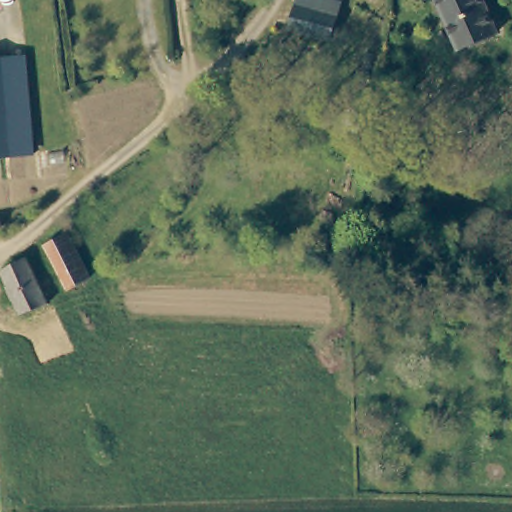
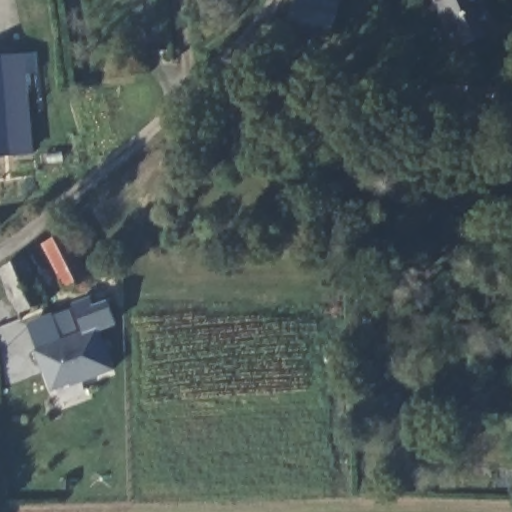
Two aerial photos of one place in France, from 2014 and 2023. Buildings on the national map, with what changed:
unchanged [(319,41),(289,33),(297,0),(321,0),(337,4),(334,19),(327,43),(319,41)]
unchanged [(487,10),(450,28),(436,0),(483,0),(487,10)]
unchanged [(487,10),(498,32),(460,51),(450,28),(487,10)]
unchanged [(29,149),(0,152),(0,56),(19,55),(29,149)]
unchanged [(67,235),(89,275),(67,285),(45,245),(67,235)]
unchanged [(12,293),(1,270),(26,256),(38,280),(48,302),(22,313),(12,293)]
new [(54,394),(29,324),(73,306),(81,332),(100,326),(115,370),(54,394)]

